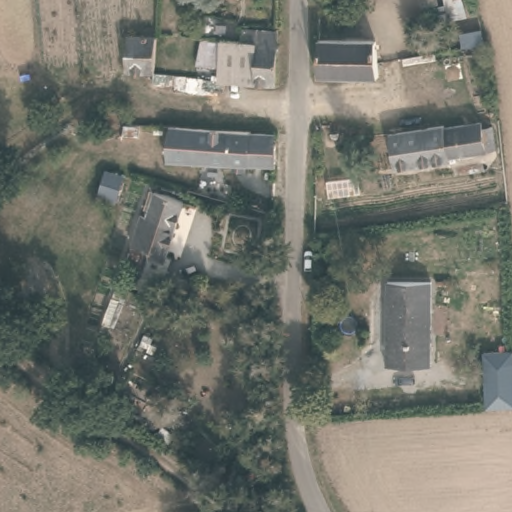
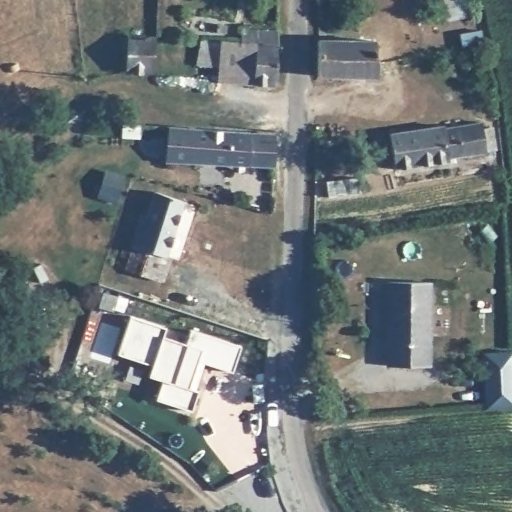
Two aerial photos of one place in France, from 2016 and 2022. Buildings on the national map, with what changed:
unchanged [(241,43),(241,24),(278,26),(277,44),(277,84),(221,81),(219,81),(221,42),(241,43)]
unchanged [(155,72),(128,71),(128,35),(156,35),(155,72)]
unchanged [(318,74),(319,39),(375,40),(377,76),(363,75),(318,74)]
unchanged [(122,137),(85,134),(85,109),(125,109),(127,124),(122,137)]
unchanged [(443,125),(446,128),(479,122),(480,127),(491,127),(493,147),(476,152),(450,156),(447,160),(393,167),(388,133),(443,125)]
unchanged [(165,159),(170,127),(252,131),(250,141),(276,144),(275,167),(165,159)]
unchanged [(185,199),(166,256),(171,257),(162,281),(124,268),(141,215),(147,212),(154,191),(185,199)]
unchanged [(430,280),(429,363),(389,363),(387,281),(430,280)]
new [(232,372),(206,364),(197,391),(199,392),(192,411),(156,400),(162,382),(147,377),(151,366),(118,355),(130,317),(167,328),(164,336),(187,343),(192,329),(242,346),(232,372)]
new [(512,351),(512,407),(487,408),(484,352),(512,351)]

